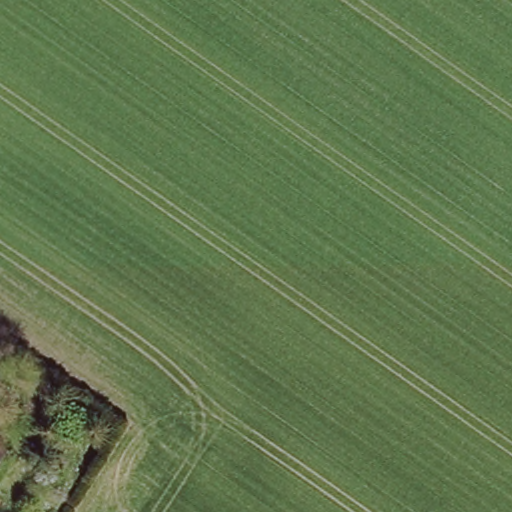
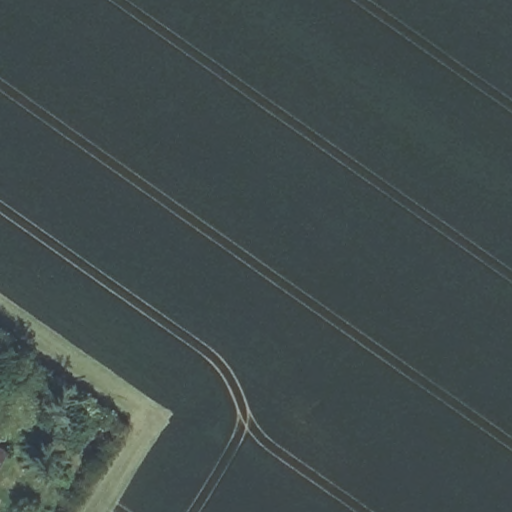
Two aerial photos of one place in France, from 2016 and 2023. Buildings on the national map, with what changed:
unchanged [(0,459),(0,443),(7,447),(0,459)]

